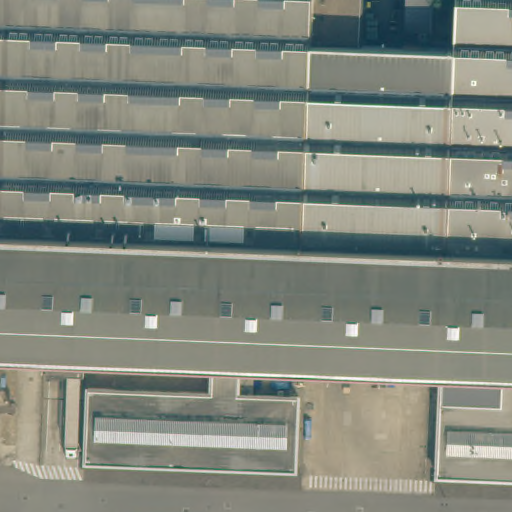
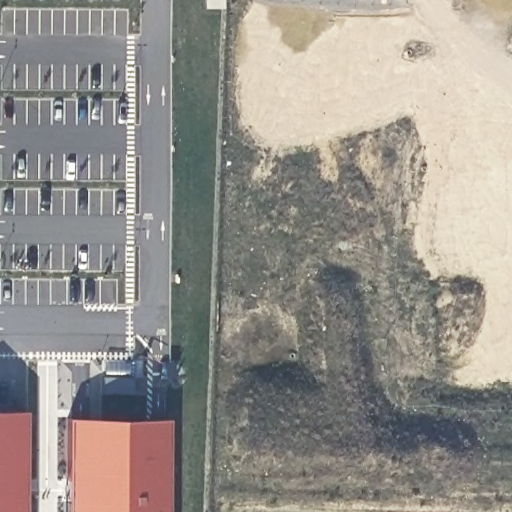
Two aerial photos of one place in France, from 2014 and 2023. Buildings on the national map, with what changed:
demolished [(454,53),(456,0),(512,0),(512,479),(437,476),(440,401),(500,404),(501,376),(240,365),(239,373),(254,374),(253,394),(298,396),(295,469),(86,461),(89,387),(211,392),(212,364),(0,356),(0,0),(363,0),(360,49),(454,53)]
new [(27,416),(25,512),(0,512),(0,415),(27,416)]
new [(170,423),(168,512),(68,512),(68,424),(170,423)]

